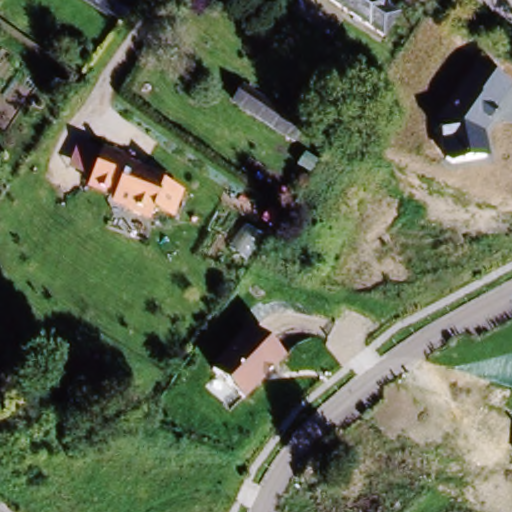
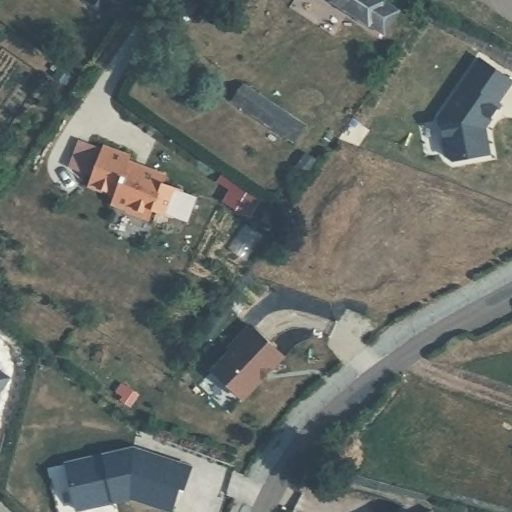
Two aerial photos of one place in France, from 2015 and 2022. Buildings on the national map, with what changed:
unchanged [(116,15),(100,4),(98,7),(88,0),(126,0),(116,15)]
unchanged [(372,30),(327,0),(375,0),(387,8),(372,30)]
unchanged [(481,59),(512,80),(512,83),(485,129),(490,152),(447,160),(442,116),(481,59)]
unchanged [(231,97),(241,82),(302,125),(292,140),(231,97)]
unchanged [(105,145),(130,159),(128,165),(167,177),(148,216),(82,191),(105,145)]
unchanged [(230,350),(227,348),(250,325),(285,357),(243,402),(210,370),(230,350)]
demolished [(1,352),(0,356),(0,352),(1,352)]
new [(6,381),(0,390),(0,377),(6,381)]
new [(138,454),(151,458),(151,456),(195,470),(188,491),(183,490),(177,512),(173,512),(135,500),(89,512),(82,512),(71,467),(137,451),(138,454)]

